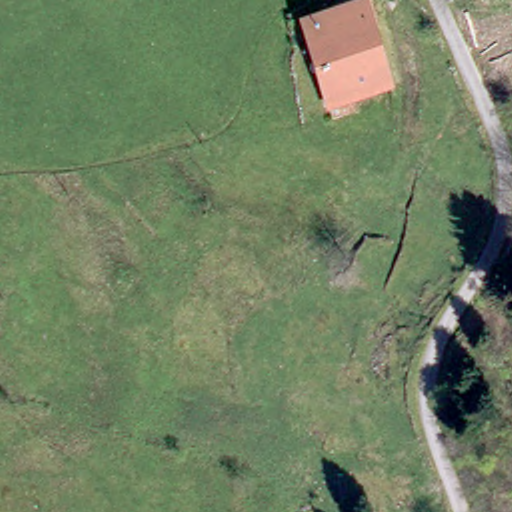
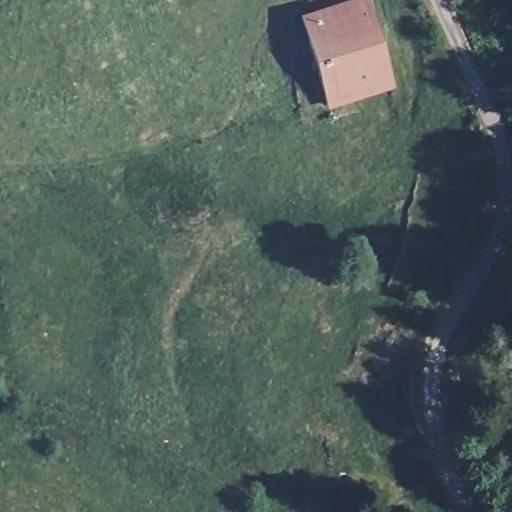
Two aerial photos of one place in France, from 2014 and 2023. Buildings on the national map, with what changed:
unchanged [(365,1),(392,78),(325,102),(297,25),(365,1)]

